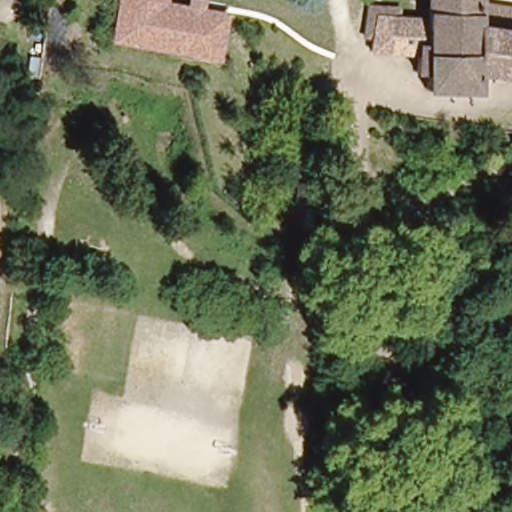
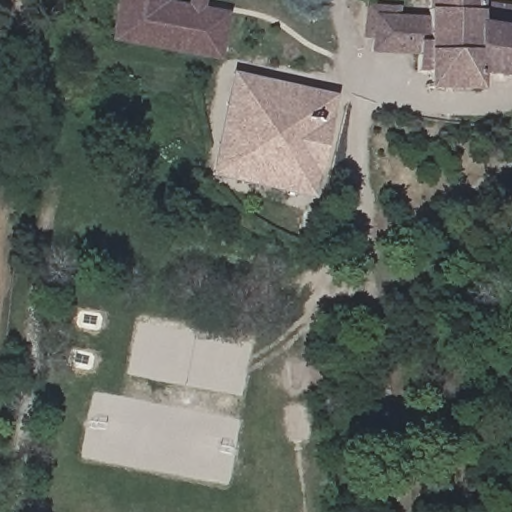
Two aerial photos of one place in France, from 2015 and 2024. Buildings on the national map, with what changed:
unchanged [(189,4),(189,0),(208,0),(207,8),(230,11),(221,61),(113,41),(121,0),(163,0),(169,1),(189,4)]
unchanged [(169,1),(163,0),(169,0),(169,1)]
unchanged [(402,6),(401,18),(425,19),(426,0),(476,0),(476,3),(512,7),(512,73),(483,69),(482,86),(426,85),(426,68),(416,68),(417,50),(373,44),(373,34),(361,33),(365,2),(402,6)]
new [(301,193),(244,181),(215,174),(222,145),(231,103),(238,74),(266,80),(312,90),(340,96),(336,111),(321,180),(318,196),(301,193)]

